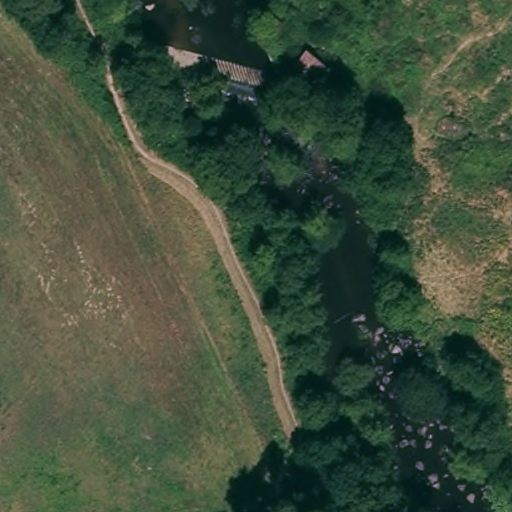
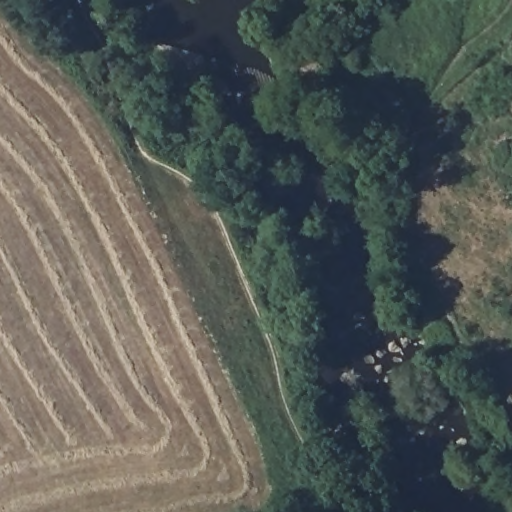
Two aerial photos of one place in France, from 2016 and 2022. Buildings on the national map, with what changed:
unchanged [(331,66),(310,91),(285,71),(306,45),(331,66)]

